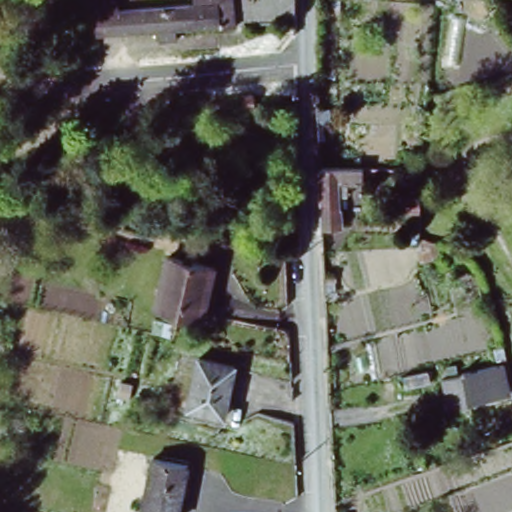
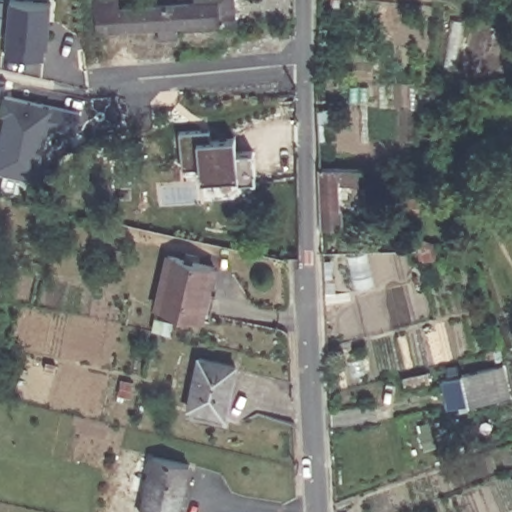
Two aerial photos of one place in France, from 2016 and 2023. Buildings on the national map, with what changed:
new [(8,0),(14,0),(50,4),(46,45),(44,45),(42,60),(4,56),(8,0)]
unchanged [(210,26),(96,35),(93,1),(102,0),(116,0),(117,10),(210,4),(209,0),(255,0),(250,30),(212,32),(210,26)]
unchanged [(255,0),(293,0),(295,27),(250,30),(255,0)]
new [(4,115),(0,114),(0,109),(3,96),(79,112),(74,132),(47,126),(35,177),(0,169),(0,133),(4,115)]
unchanged [(310,104),(323,105),(324,119),(310,119),(310,104)]
new [(209,122),(209,125),(210,132),(237,134),(239,150),(255,149),(259,177),(241,179),(240,172),(200,172),(200,159),(182,161),(178,125),(200,123),(209,122)]
unchanged [(347,182),(348,196),(341,196),(341,210),(345,210),(345,226),(325,226),(322,167),(369,169),(369,184),(347,182)]
unchanged [(417,206),(399,206),(400,191),(417,191),(417,206)]
unchanged [(210,291),(217,293),(212,317),(158,304),(170,253),(217,264),(210,291)]
unchanged [(227,415),(190,407),(202,355),(237,365),(227,415)]
unchanged [(505,401),(474,409),(472,405),(455,410),(452,403),(447,385),(465,380),(464,376),(487,370),(505,366),(512,388),(512,395),(504,396),(505,401)]
unchanged [(150,512),(144,510),(155,455),(190,463),(180,512),(150,512)]

